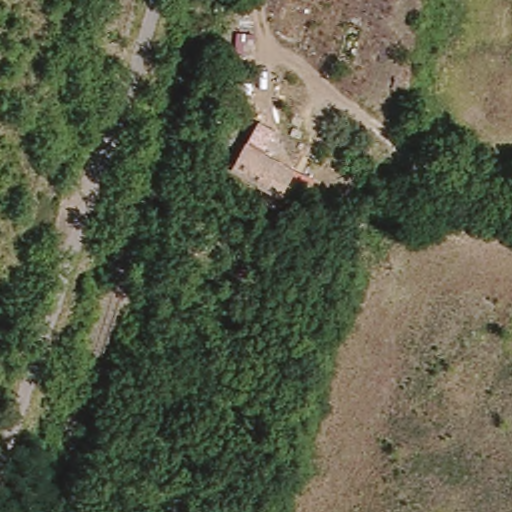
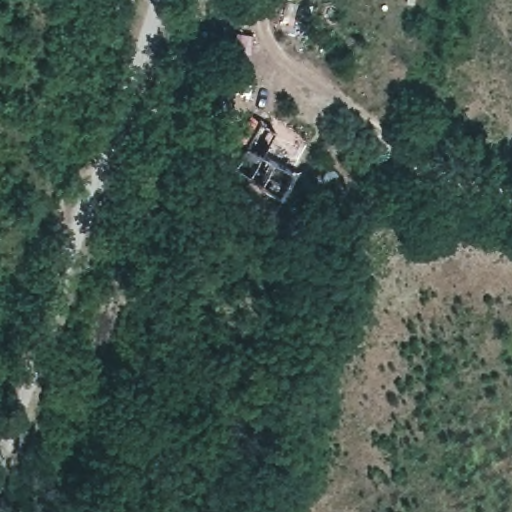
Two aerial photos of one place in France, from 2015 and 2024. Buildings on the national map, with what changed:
unchanged [(286,192),(275,187),(268,199),(228,166),(241,146),(271,166),(291,180),(286,192)]

